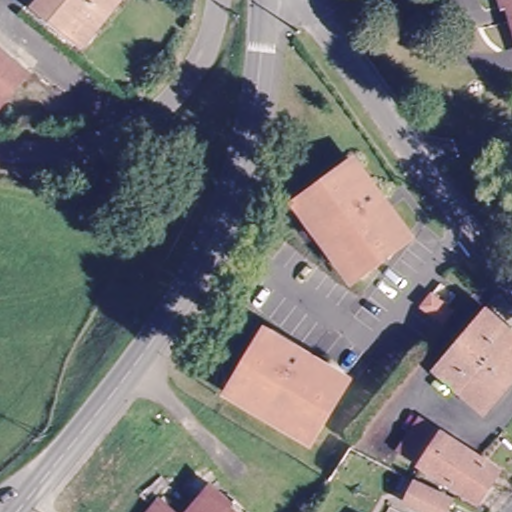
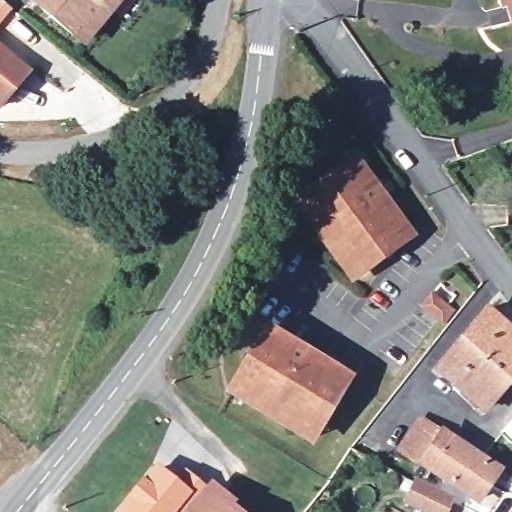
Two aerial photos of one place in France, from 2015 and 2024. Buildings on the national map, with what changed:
unchanged [(118,0),(81,43),(37,5),(42,0),(118,0)]
unchanged [(494,2),(494,0),(512,0),(512,40),(499,0),(494,2)]
unchanged [(24,71),(0,102),(0,49),(24,71)]
unchanged [(298,204),(306,198),(355,161),(383,200),(380,203),(386,211),(389,209),(409,235),(360,272),(352,277),(298,204)]
unchanged [(130,165),(134,177),(114,184),(110,172),(130,165)]
unchanged [(431,314),(423,307),(432,295),(440,302),(452,311),(442,323),(431,314)]
unchanged [(486,310),(512,333),(512,377),(484,409),(436,369),(486,310)]
unchanged [(232,392),(237,384),(268,332),(309,356),(307,359),(316,364),(318,362),(346,379),(315,431),(310,439),(232,392)]
unchanged [(420,420),(497,471),(477,501),(401,449),(420,420)]
new [(116,511),(156,464),(176,479),(185,470),(206,485),(211,479),(237,503),(233,506),(240,512),(118,512),(116,511)]
unchanged [(438,512),(432,512),(401,497),(410,478),(446,496),(438,512)]
demolished [(209,489),(232,506),(229,511),(231,512),(190,512),(209,489)]

